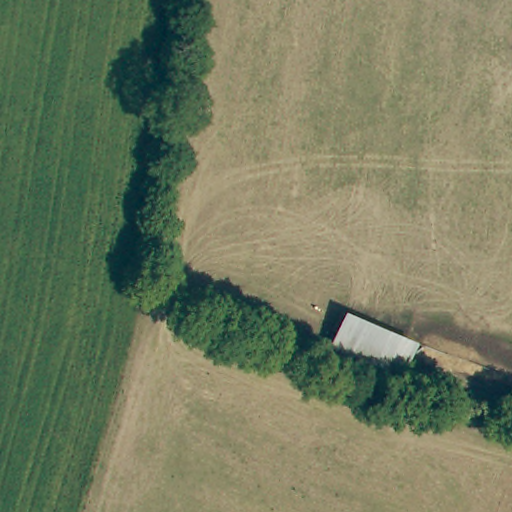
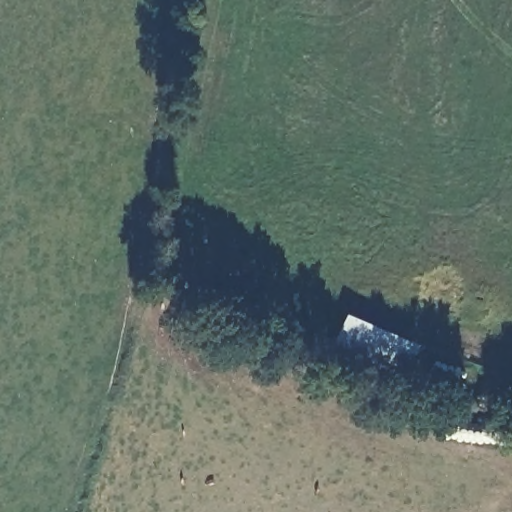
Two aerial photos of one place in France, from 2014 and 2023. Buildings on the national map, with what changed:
unchanged [(395,383),(323,353),(341,312),(414,344),(395,383)]

